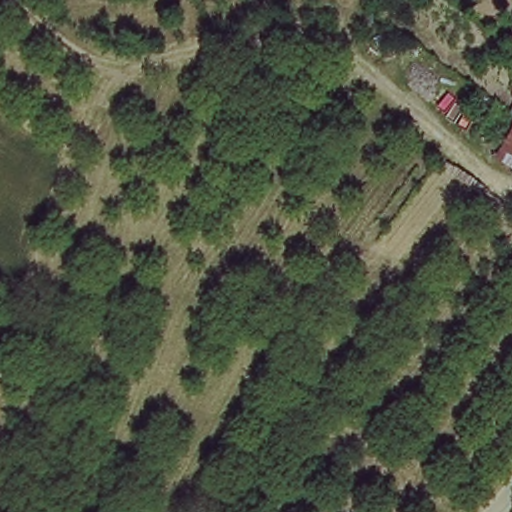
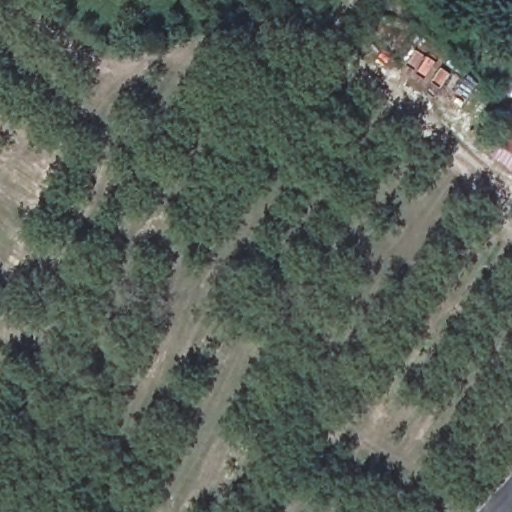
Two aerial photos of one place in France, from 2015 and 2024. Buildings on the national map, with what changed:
unchanged [(499,143),(512,124),(512,169),(495,157),(499,143)]

